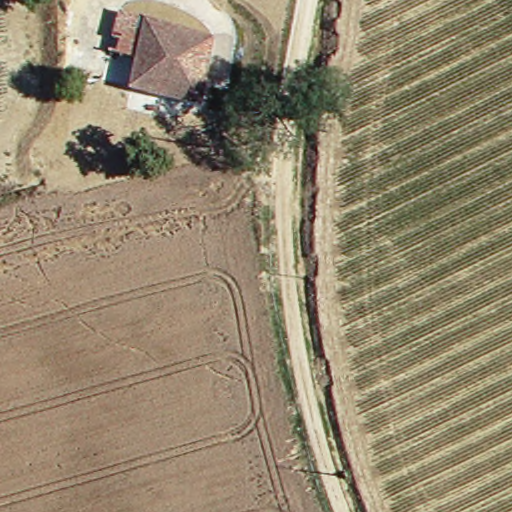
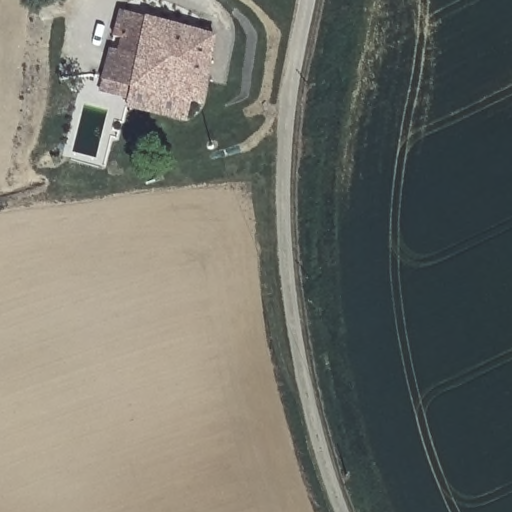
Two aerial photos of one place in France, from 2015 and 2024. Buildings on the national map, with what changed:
unchanged [(220,36),(207,102),(128,85),(134,51),(130,40),(135,15),(220,36)]

